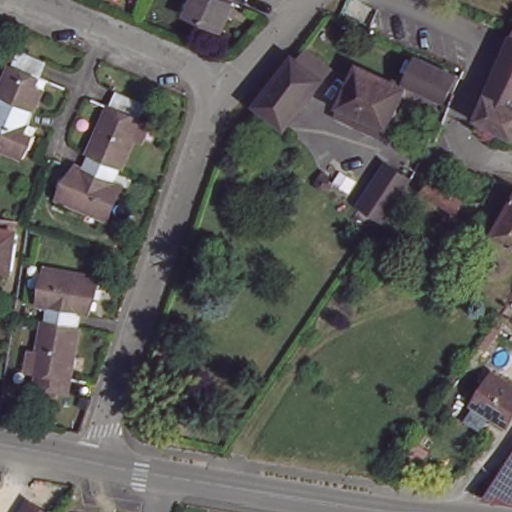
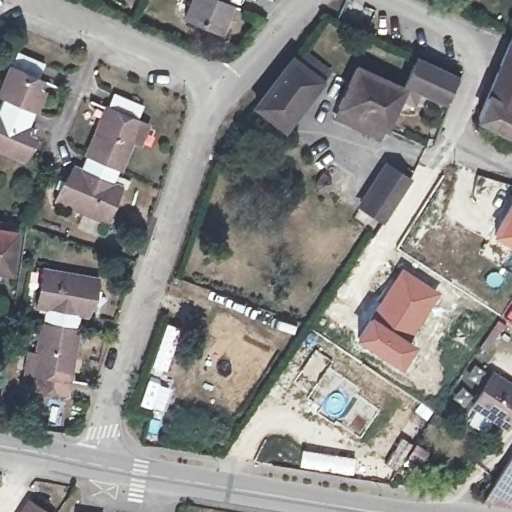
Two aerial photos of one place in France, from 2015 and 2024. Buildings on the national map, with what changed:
unchanged [(233,7),(221,33),(189,19),(197,0),(221,0),(220,1),(233,7)]
unchanged [(471,129),(512,45),(512,149),(480,133),(471,129)]
unchanged [(19,52),(46,65),(37,85),(45,90),(26,130),(34,135),(23,159),(0,148),(0,104),(3,98),(0,96),(0,93),(19,52)]
unchanged [(279,81),(296,60),(325,85),(291,131),(258,106),(279,81)]
unchanged [(417,63),(457,80),(447,105),(405,88),(417,63)]
unchanged [(338,119),(342,111),(337,109),(355,67),(405,88),(384,129),(382,129),(377,139),(338,119)]
unchanged [(147,109),(142,121),(151,125),(143,146),(135,143),(116,185),(123,189),(107,224),(57,199),(65,181),(70,183),(77,168),(83,170),(118,94),(147,109)]
unchanged [(359,208),(384,166),(408,184),(382,223),(359,208)]
unchanged [(469,195),(457,214),(427,194),(438,177),(469,195)]
unchanged [(512,195),(512,241),(493,227),(512,195)]
unchanged [(16,280),(0,277),(0,227),(24,232),(16,280)]
new [(401,267),(437,291),(407,337),(415,344),(397,368),(355,339),(401,267)]
unchanged [(98,279),(96,292),(91,292),(87,317),(80,315),(66,399),(34,394),(35,377),(27,377),(31,356),(35,356),(43,310),(37,309),(45,272),(98,279)]
unchanged [(512,379),(512,417),(509,422),(475,399),(496,368),(512,379)]
unchanged [(512,457),(512,512),(505,512),(479,508),(512,457)]
unchanged [(51,512),(17,512),(28,494),(51,512)]

